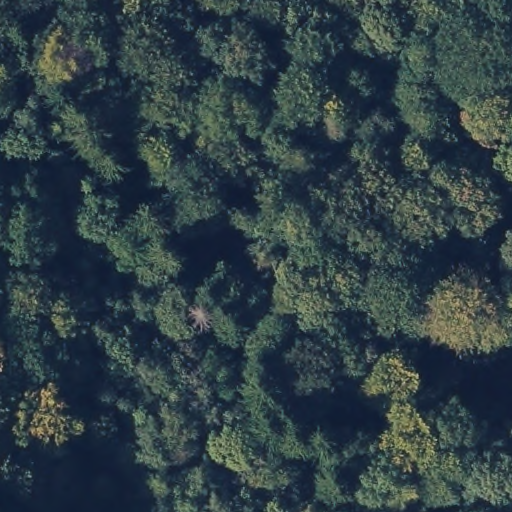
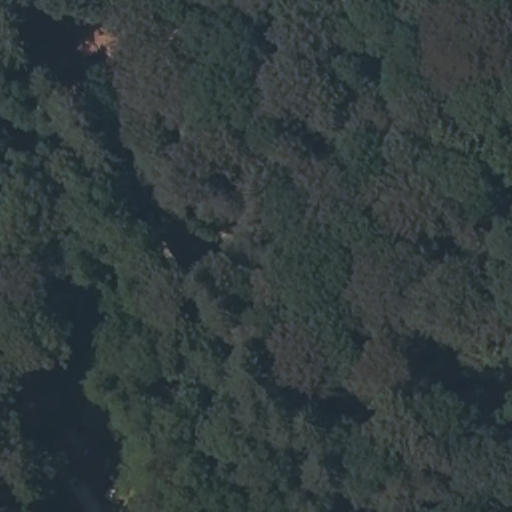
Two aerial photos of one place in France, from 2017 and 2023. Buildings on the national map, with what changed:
unchanged [(75,424),(95,438),(73,468),(54,454),(75,424)]

